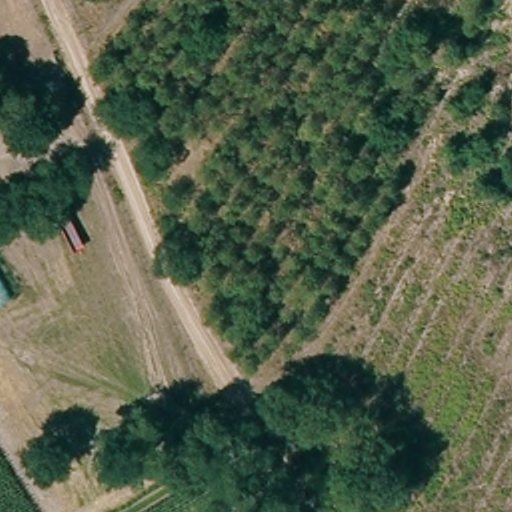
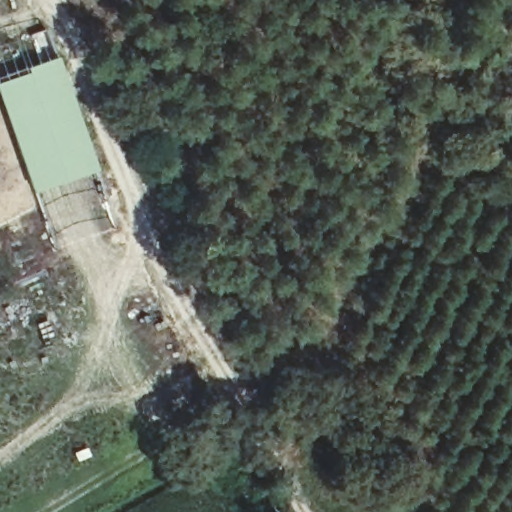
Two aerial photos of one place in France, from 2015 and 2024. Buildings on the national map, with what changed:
new [(49,37),(110,211),(47,232),(0,96),(0,54),(49,37)]
demolished [(9,293),(0,300),(0,277),(9,293)]

